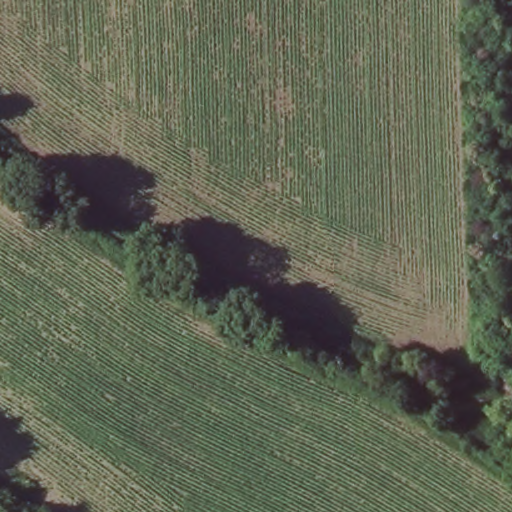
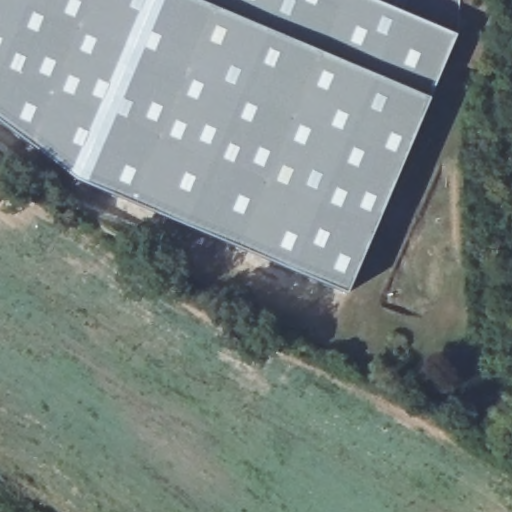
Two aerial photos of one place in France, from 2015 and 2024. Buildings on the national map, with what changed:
new [(347,293),(77,180),(0,122),(0,0),(371,0),(456,36),(429,99),(347,293)]

